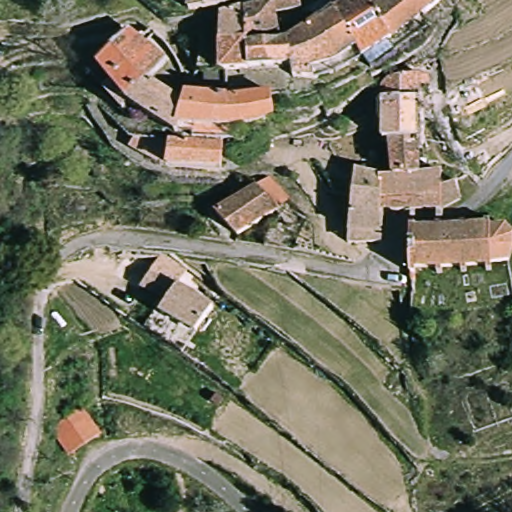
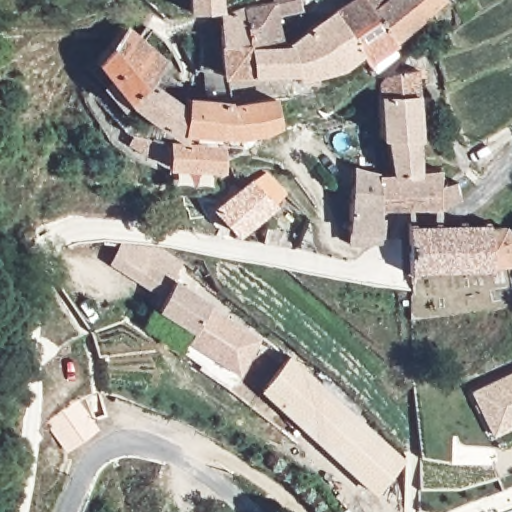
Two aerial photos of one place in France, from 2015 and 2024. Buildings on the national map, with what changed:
unchanged [(188,10),(188,0),(233,0),(216,7),(188,10)]
unchanged [(273,1),(273,0),(302,0),(304,7),(276,12),(281,34),(281,42),(253,44),(248,5),(261,2),(273,1)]
unchanged [(438,0),(424,12),(430,21),(374,66),(366,57),(364,57),(335,9),(348,0),(438,0)]
unchanged [(248,5),(253,44),(281,42),(293,39),(335,9),(364,57),(319,79),(295,78),(293,68),(251,72),(251,71),(225,72),(221,15),(248,5)]
unchanged [(143,37),(151,27),(158,32),(149,42),(171,60),(153,81),(181,100),(188,104),(185,125),(189,126),(186,134),(183,135),(168,127),(133,103),(126,109),(93,71),(133,29),(143,37)]
unchanged [(370,82),(379,71),(405,66),(417,67),(419,76),(405,77),(407,117),(408,135),(378,136),(371,136),(370,82)]
unchanged [(231,96),(241,96),(242,102),(260,100),(260,97),(279,95),(281,120),(261,127),(228,130),(189,126),(185,125),(188,104),(190,96),(231,102),(231,96)]
unchanged [(407,171),(381,172),(378,136),(408,135),(407,167),(407,171)]
unchanged [(175,142),(233,146),(232,167),(173,164),(173,159),(151,154),(136,146),(138,136),(173,145),(175,142)]
unchanged [(381,176),(381,172),(407,171),(407,167),(428,166),(430,177),(446,179),(449,196),(432,206),(383,206),(371,207),(373,242),(341,244),(346,201),(348,181),(349,173),(368,177),(381,176)]
unchanged [(216,210),(230,203),(245,193),(257,183),(280,205),(240,234),(216,210)]
unchanged [(414,222),(420,222),(420,227),(440,227),(440,222),(446,222),(446,226),(465,226),(464,220),(470,220),(470,225),(489,224),(489,218),(495,218),(495,223),(510,222),(512,226),(512,261),(497,262),(497,268),(491,268),(491,263),(473,263),(473,271),(464,271),(465,264),(447,265),(447,272),(441,272),(441,265),(421,267),(421,273),(415,273),(414,222)]
new [(146,263),(136,280),(108,267),(119,242),(160,248),(183,263),(172,280),(146,263)]
unchanged [(191,331),(155,307),(161,297),(136,280),(146,263),(208,303),(191,331)]
new [(261,340),(238,375),(185,342),(177,352),(138,326),(151,305),(158,295),(161,297),(155,307),(191,331),(208,305),(261,340)]
new [(376,495),(258,390),(289,356),(403,462),(376,495)]
new [(490,436),(470,391),(512,371),(512,426),(490,436)]
demolished [(467,392),(512,377),(512,428),(483,438),(467,392)]
unchanged [(72,453),(50,421),(83,400),(102,430),(72,453)]

